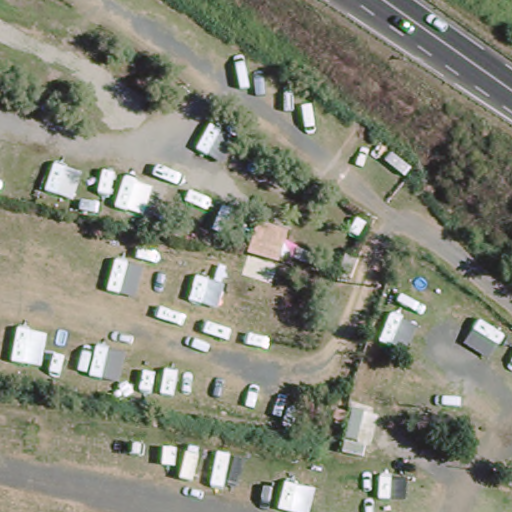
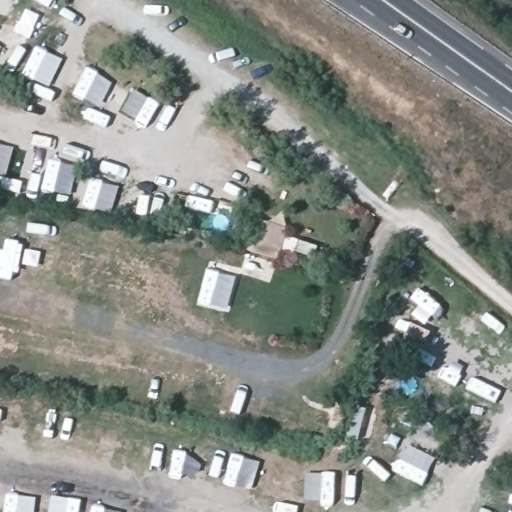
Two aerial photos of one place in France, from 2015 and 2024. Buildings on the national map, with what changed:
[]

